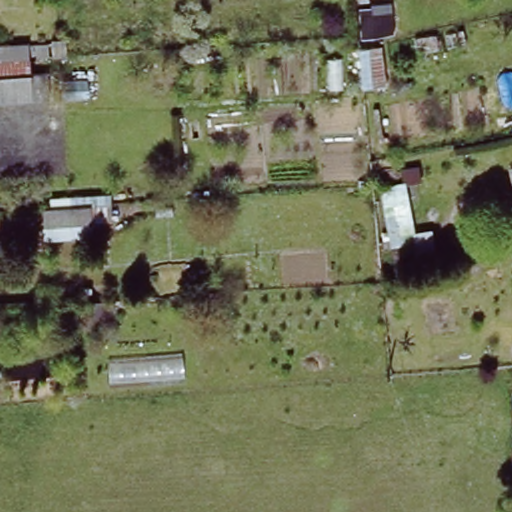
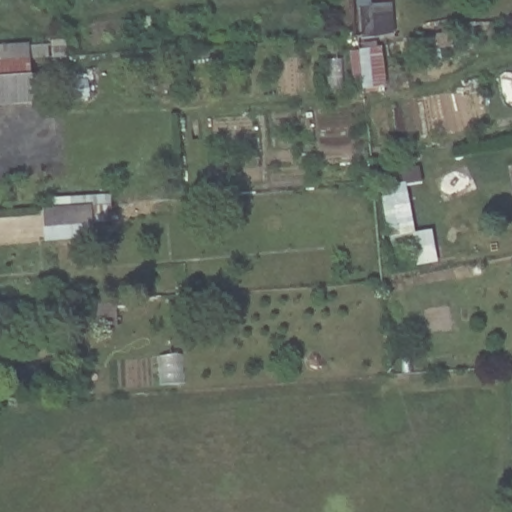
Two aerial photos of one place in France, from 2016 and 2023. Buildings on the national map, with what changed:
unchanged [(37,97),(0,100),(0,41),(33,39),(34,52),(37,97)]
unchanged [(112,202),(112,223),(40,229),(38,209),(112,202)]

